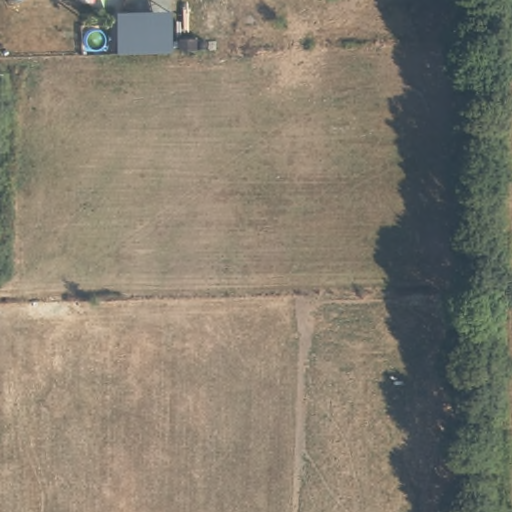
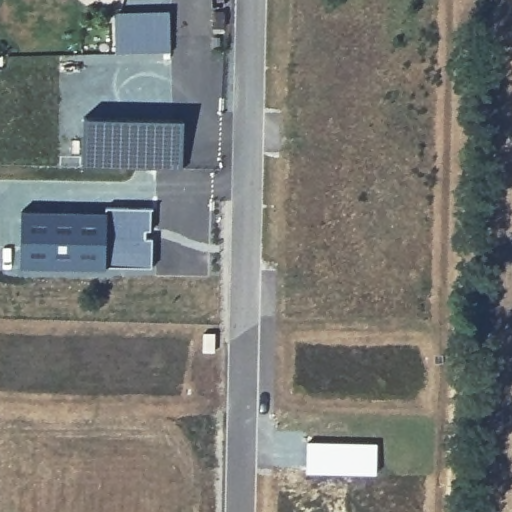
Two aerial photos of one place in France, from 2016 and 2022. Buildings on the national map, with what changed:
unchanged [(171,51),(116,54),(116,12),(170,11),(171,51)]
new [(84,117),(185,119),(184,169),(83,167),(84,117)]
new [(153,207),(151,267),(106,266),(106,270),(20,269),(23,211),(105,213),(106,206),(153,207)]

